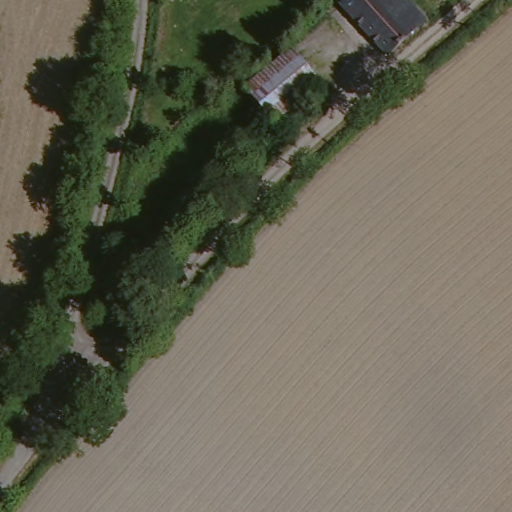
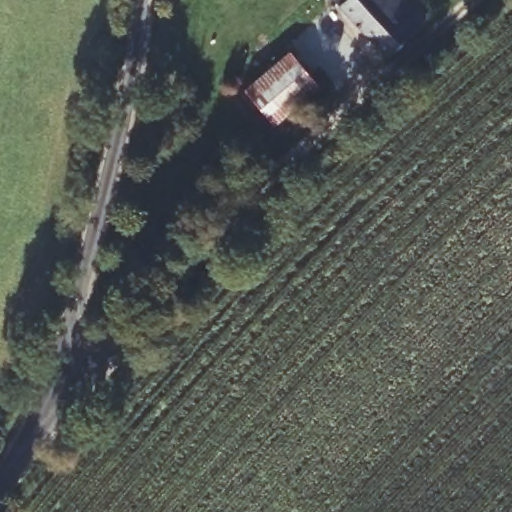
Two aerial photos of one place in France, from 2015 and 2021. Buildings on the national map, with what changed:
unchanged [(408,0),(429,25),(391,60),(338,2),(340,0),(408,0)]
unchanged [(288,54),(315,86),(269,126),(244,94),(288,54)]

